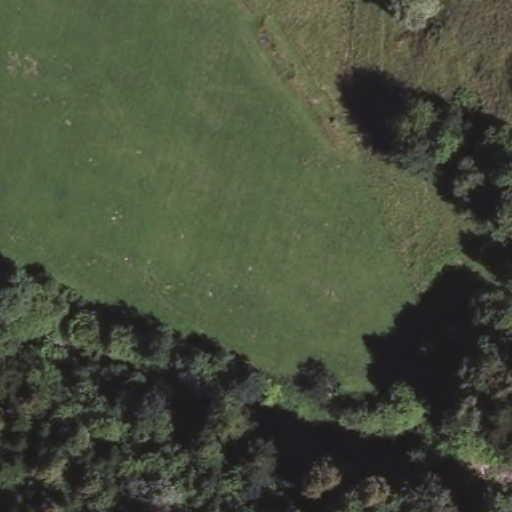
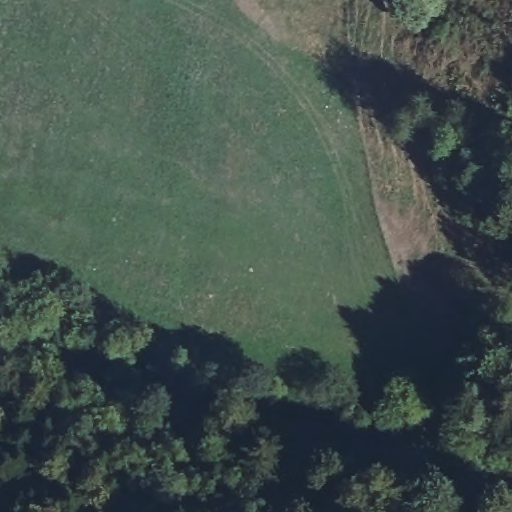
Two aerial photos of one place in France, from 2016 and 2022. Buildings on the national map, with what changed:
[]

